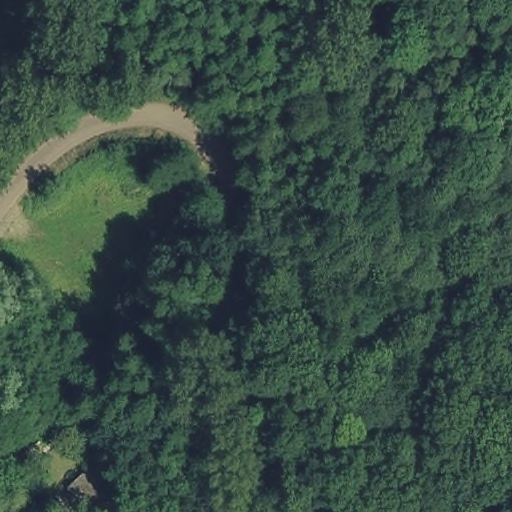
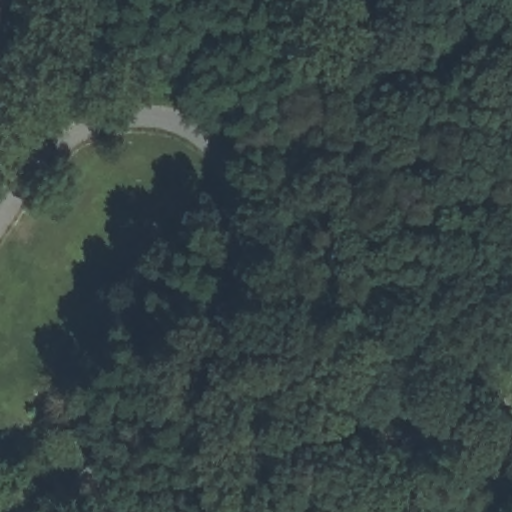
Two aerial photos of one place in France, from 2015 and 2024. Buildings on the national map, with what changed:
unchanged [(67,484),(101,452),(117,471),(104,482),(117,496),(101,512),(89,512),(67,484)]

